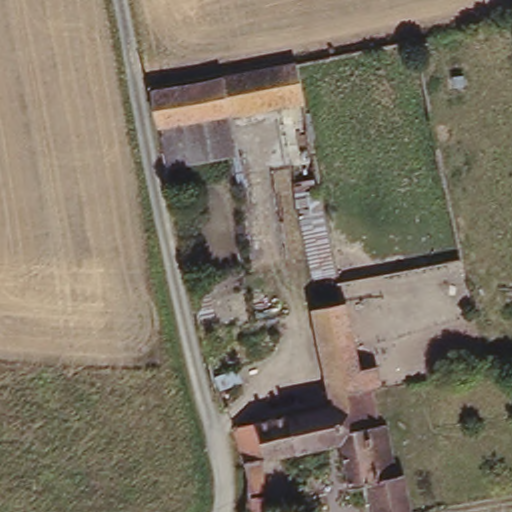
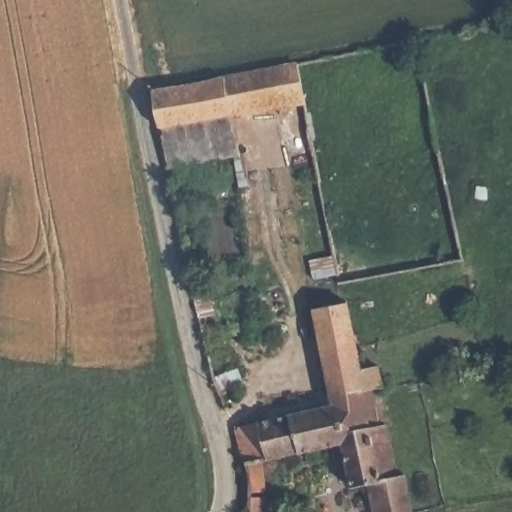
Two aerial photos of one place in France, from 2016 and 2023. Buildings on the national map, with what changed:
unchanged [(231,113),(160,127),(151,90),(301,59),(308,97),(231,113)]
unchanged [(240,158),(170,173),(160,127),(231,113),(240,158)]
unchanged [(313,265),(310,265),(298,196),(326,191),(339,277),(326,278),(325,277),(314,279),(313,265)]
unchanged [(334,401),(315,301),(348,293),(361,362),(380,358),(386,383),(374,384),(382,423),(350,429),(352,443),(262,462),(253,421),(334,401)]
unchanged [(253,421),(262,462),(261,462),(265,483),(244,487),(232,426),(253,421)]
unchanged [(359,481),(352,443),(350,429),(382,423),(395,421),(404,469),(411,468),(419,512),(381,512),(375,478),(359,481)]
unchanged [(265,512),(246,512),(246,508),(264,505),(265,512)]

